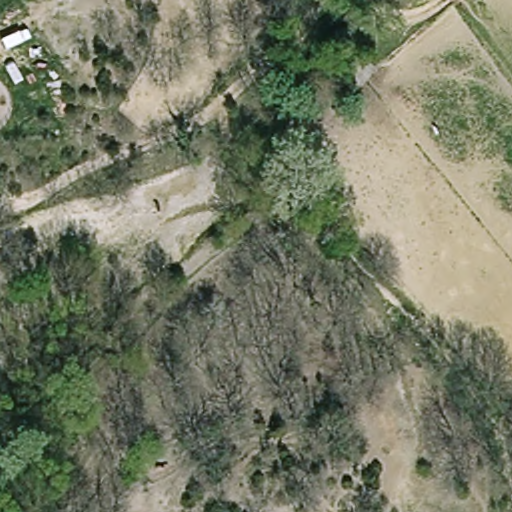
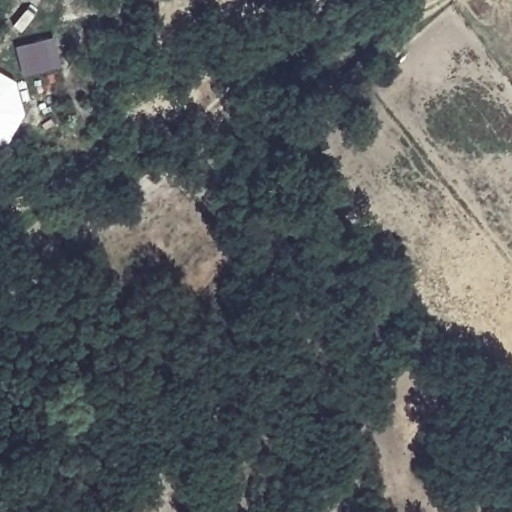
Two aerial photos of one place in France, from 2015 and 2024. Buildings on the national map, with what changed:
new [(60,66),(22,75),(15,45),(53,36),(60,66)]
new [(15,79),(23,112),(8,140),(0,142),(0,71),(15,79)]

